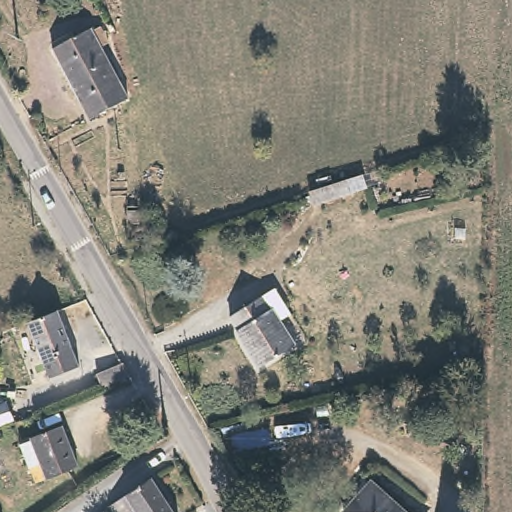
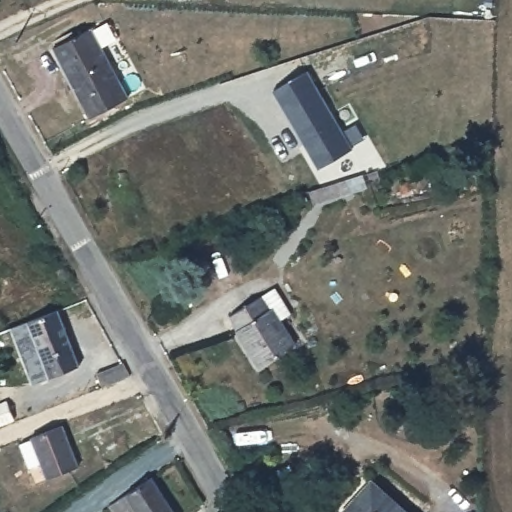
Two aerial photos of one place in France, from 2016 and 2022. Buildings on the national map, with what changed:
unchanged [(84,114),(52,57),(91,35),(98,31),(108,47),(101,52),(124,90),(84,114)]
new [(273,91),(307,73),(351,148),(318,166),(273,91)]
unchanged [(374,187),(377,199),(320,213),(317,201),(374,187)]
unchanged [(279,283),(297,312),(287,318),(303,343),(262,366),(238,325),(241,323),(234,310),(279,283)]
unchanged [(56,310),(78,364),(47,376),(26,322),(56,310)]
unchanged [(121,364),(127,375),(101,385),(96,374),(121,364)]
unchanged [(0,425),(0,400),(10,422),(0,425)]
unchanged [(65,423),(80,463),(49,476),(44,461),(33,465),(25,442),(37,437),(36,434),(65,423)]
unchanged [(155,476),(178,512),(139,512),(136,507),(127,512),(115,512),(111,504),(155,476)]
unchanged [(406,512),(346,512),(344,510),(372,479),(406,512)]

